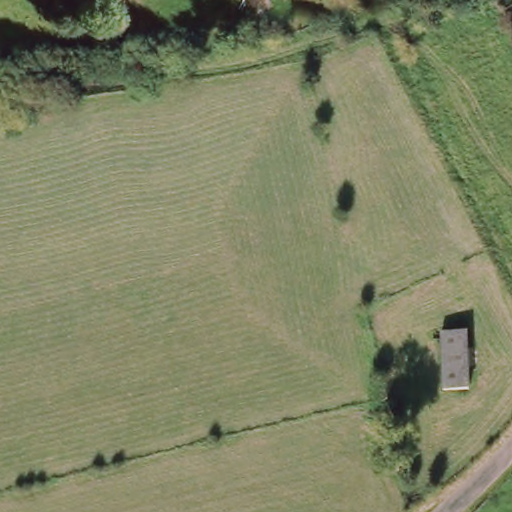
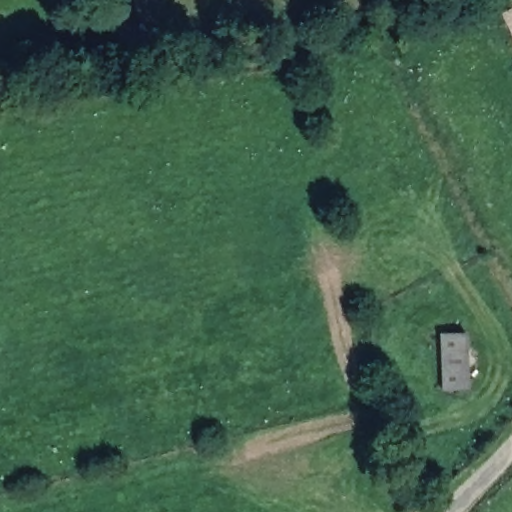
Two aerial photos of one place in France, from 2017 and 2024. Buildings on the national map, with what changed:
unchanged [(243,30),(248,56),(221,60),(217,34),(243,30)]
unchanged [(440,337),(468,335),(469,390),(442,389),(440,337)]

